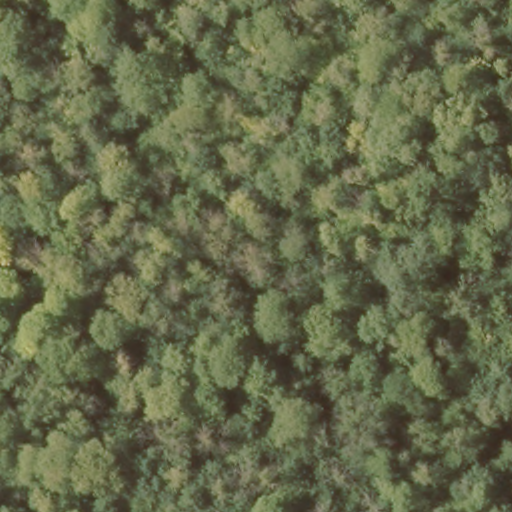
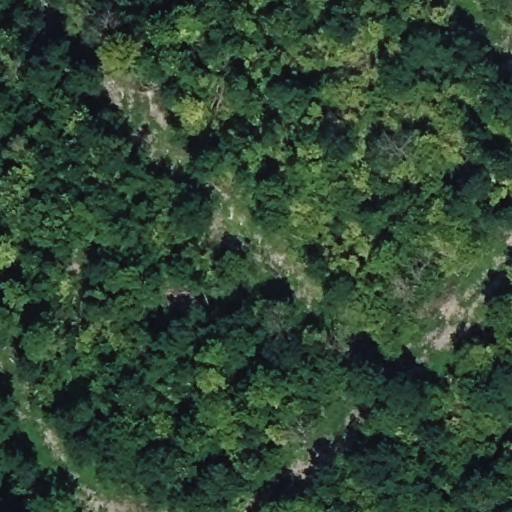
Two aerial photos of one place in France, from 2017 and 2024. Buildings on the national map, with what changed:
[]

